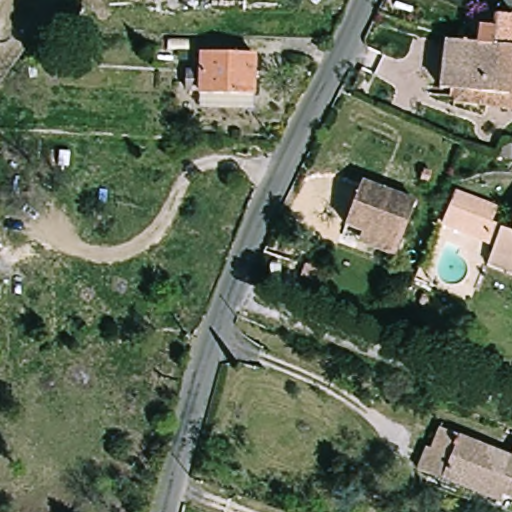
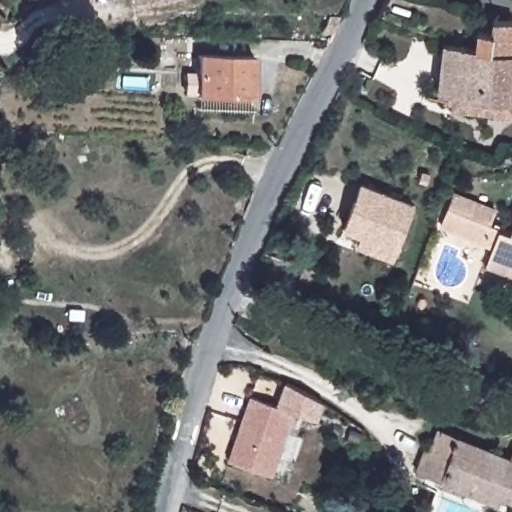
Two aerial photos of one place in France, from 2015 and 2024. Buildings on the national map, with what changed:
unchanged [(453,91),(439,89),(446,41),(475,46),(479,24),(491,25),(492,14),(512,17),(512,55),(512,61),(512,113),(451,104),(453,91)]
unchanged [(192,54),(181,55),(170,54),(170,44),(192,44),(192,54)]
unchanged [(202,107),(202,99),(190,99),(189,73),(202,73),(202,59),(254,59),(254,99),(254,107),(202,107)]
unchanged [(353,242),(356,234),(346,230),(359,187),(412,205),(399,247),(396,256),(353,242)]
unchanged [(485,240),(441,226),(447,209),(466,215),(471,202),(488,207),(484,221),(490,223),(485,240)]
unchanged [(500,230),(511,234),(512,231),(512,276),(487,267),(491,255),(500,230)]
unchanged [(314,267),(310,280),(297,276),(302,262),(314,267)]
new [(276,406),(285,382),(325,403),(318,422),(294,412),(273,477),(227,461),(250,396),(276,406)]
unchanged [(498,502),(418,471),(425,448),(430,451),(440,426),(509,454),(512,447),(512,497),(501,492),(498,502)]

